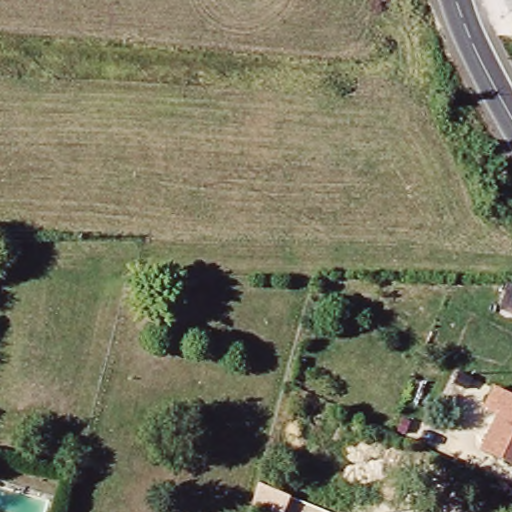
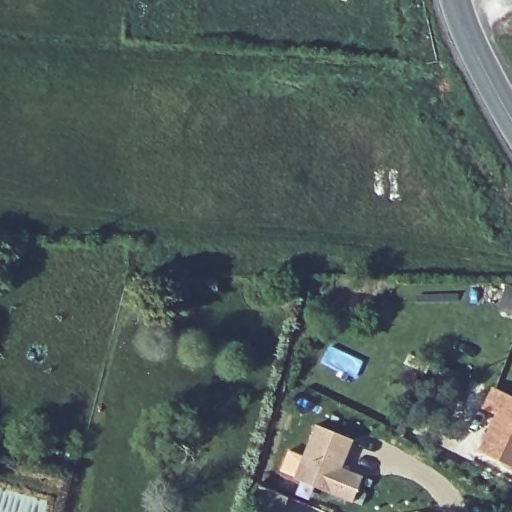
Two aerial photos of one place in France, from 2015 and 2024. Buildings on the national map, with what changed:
new [(507,285),(512,287),(512,314),(499,309),(507,285)]
unchanged [(512,396),(512,463),(484,450),(503,412),(488,405),(496,388),(512,396)]
new [(317,424),(353,439),(342,468),(363,476),(353,501),(295,478),(317,424)]
unchanged [(284,512),(259,512),(250,508),(258,483),(290,496),(284,512)]

